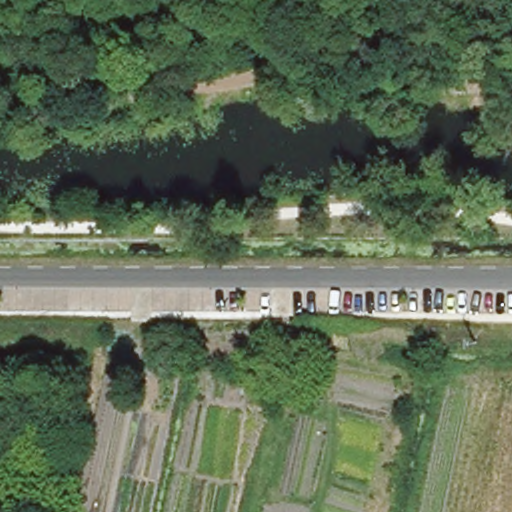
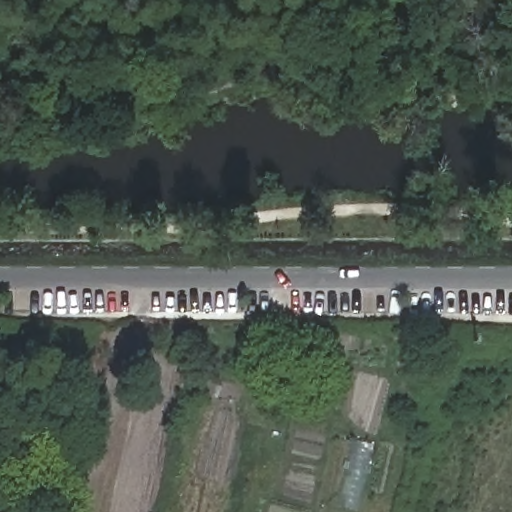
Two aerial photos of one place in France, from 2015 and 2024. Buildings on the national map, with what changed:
unchanged [(297,367),(283,401),(266,394),(280,360),(297,367)]

